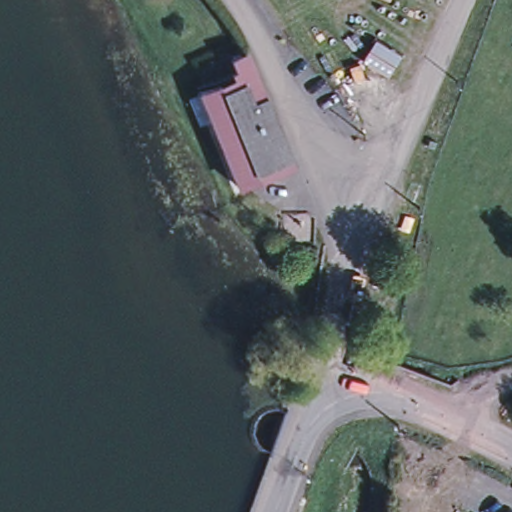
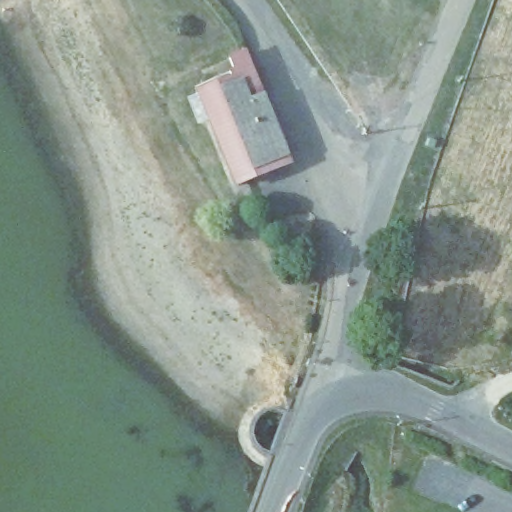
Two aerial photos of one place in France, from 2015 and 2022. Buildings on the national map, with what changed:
unchanged [(232,84),(227,72),(249,62),(298,169),(259,187),(229,124),(210,132),(195,102),(232,84)]
unchanged [(229,124),(259,187),(241,197),(210,132),(229,124)]

